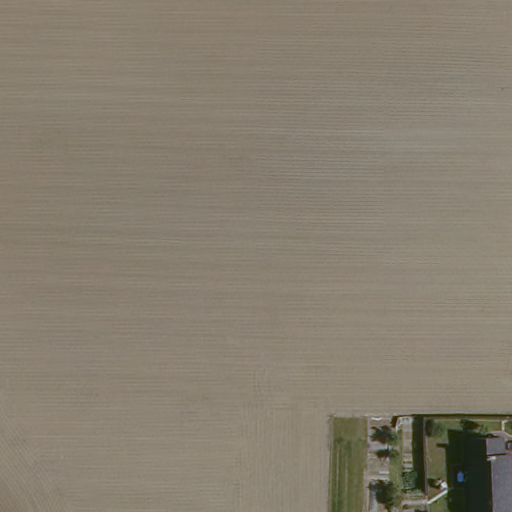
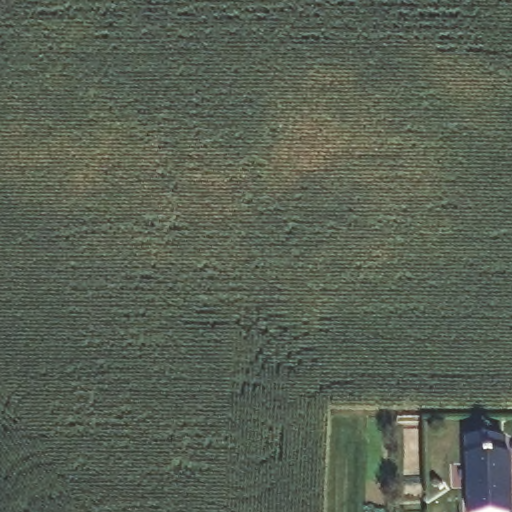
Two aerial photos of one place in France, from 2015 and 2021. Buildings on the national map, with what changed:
unchanged [(509,456),(509,512),(469,512),(469,443),(501,440),(501,457),(509,456)]

